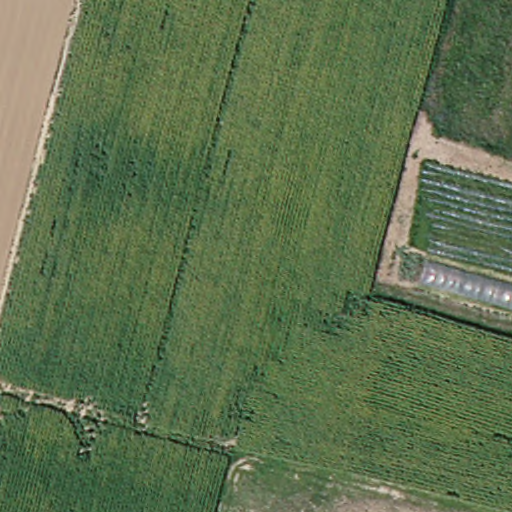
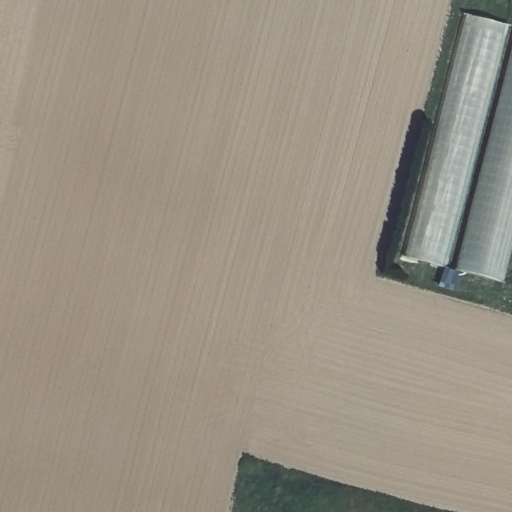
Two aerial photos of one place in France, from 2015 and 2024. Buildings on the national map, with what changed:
new [(402,255),(463,13),(512,25),(512,256),(505,283),(402,255)]

